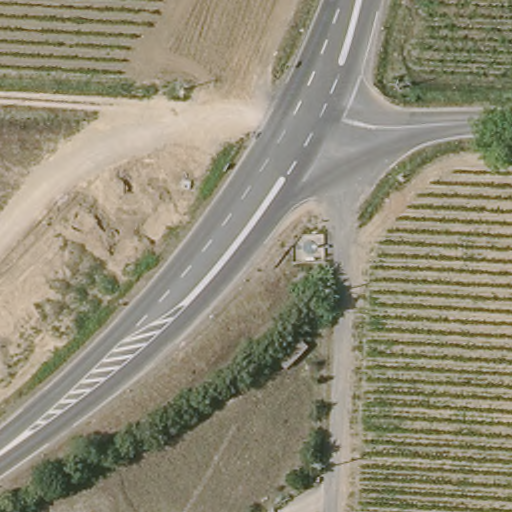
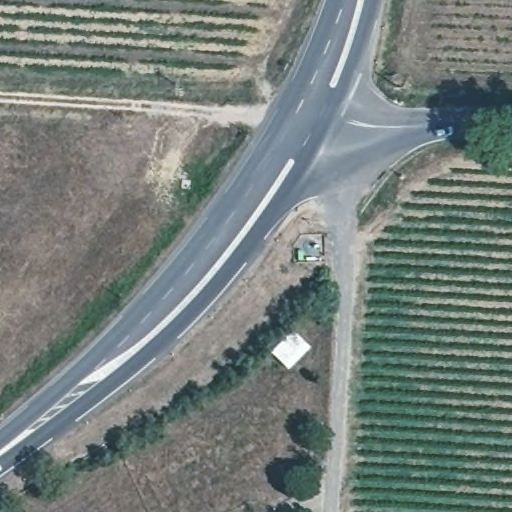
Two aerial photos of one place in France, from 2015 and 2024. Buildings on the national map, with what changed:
unchanged [(268,356),(288,330),(302,347),(281,372),(268,356)]

